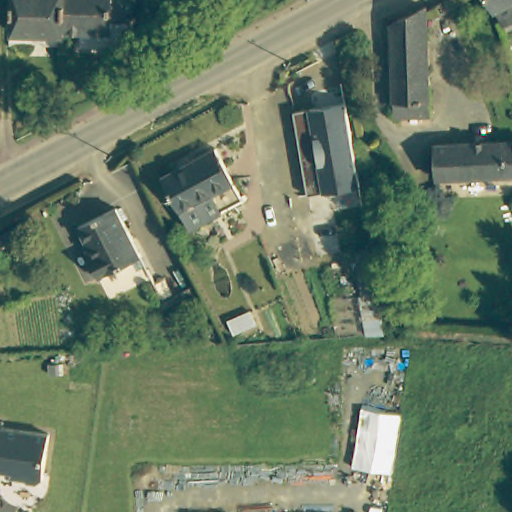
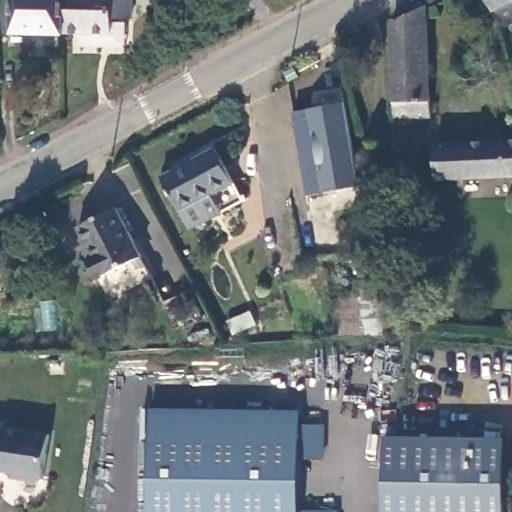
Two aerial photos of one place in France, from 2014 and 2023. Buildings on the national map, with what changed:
unchanged [(16,29),(16,0),(68,0),(68,28),(67,31),(16,29)]
unchanged [(83,44),(84,29),(68,28),(68,0),(135,0),(134,15),(116,14),(115,18),(129,18),(129,45),(83,44)]
unchanged [(490,0),(512,0),(512,1),(496,10),(490,0)]
unchanged [(496,10),(512,1),(512,23),(501,28),(496,10)]
unchanged [(427,5),(429,114),(392,115),(390,22),(423,4),(427,5)]
unchanged [(350,104),(353,122),(363,185),(308,193),(294,112),(350,104)]
unchanged [(435,144),(512,139),(512,173),(437,177),(435,144)]
unchanged [(246,202),(193,228),(165,172),(218,145),(246,202)]
unchanged [(143,258),(101,279),(91,259),(97,256),(83,229),(119,210),(143,258)]
unchanged [(381,296),(387,334),(366,337),(361,299),(381,296)]
new [(302,410),(302,424),(327,425),(326,459),(301,459),(300,511),(339,511),(339,512),(147,512),(151,407),(302,410)]
unchanged [(6,415),(5,421),(52,428),(45,472),(40,476),(29,475),(25,469),(25,467),(0,463),(0,448),(1,444),(0,444),(0,414),(6,415)]
new [(505,512),(385,512),(385,435),(507,436),(505,512)]

